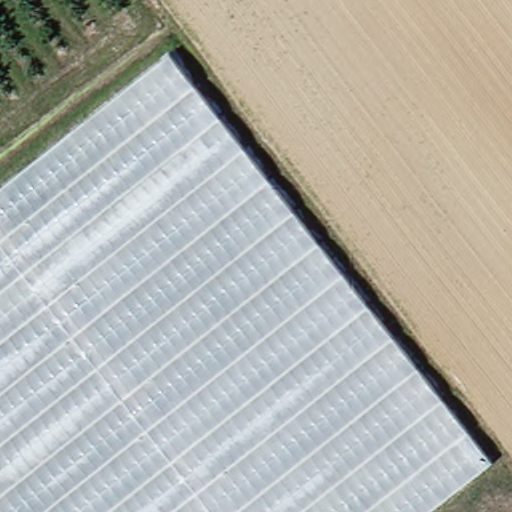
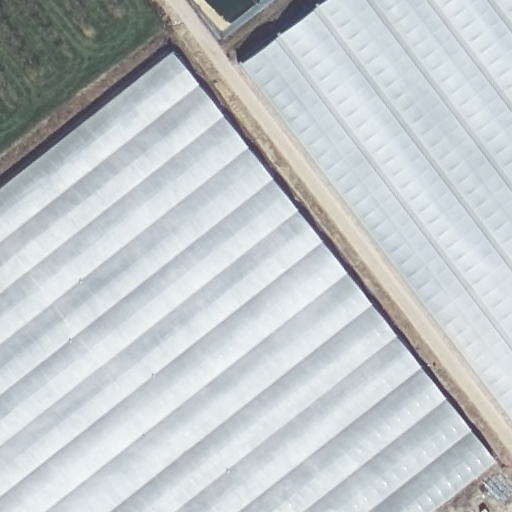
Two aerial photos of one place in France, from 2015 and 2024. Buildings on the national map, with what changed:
new [(235,65),(321,0),(512,0),(512,426),(235,65)]
unchanged [(428,512),(0,512),(0,191),(173,55),(496,458),(428,512)]

